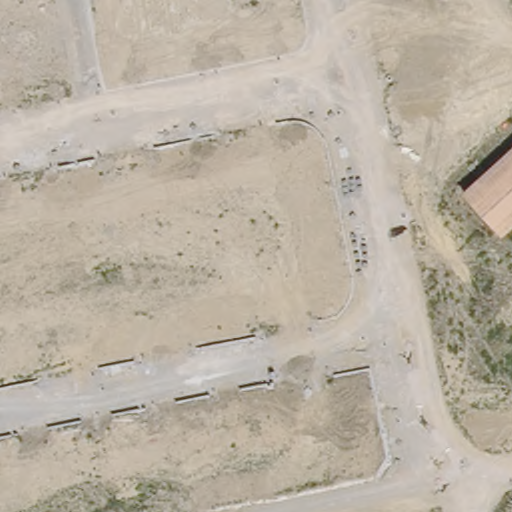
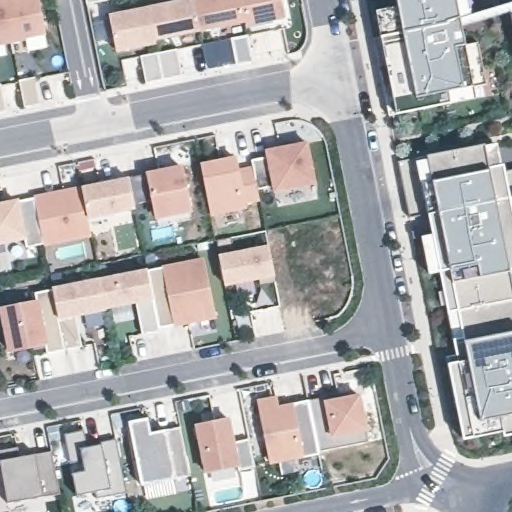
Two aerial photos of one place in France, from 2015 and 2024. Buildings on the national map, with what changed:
unchanged [(39,0),(46,32),(12,40),(4,1),(6,0),(39,0)]
unchanged [(195,0),(201,30),(155,39),(149,8),(189,0),(195,0)]
unchanged [(201,30),(195,0),(241,0),(246,21),(201,30)]
unchanged [(247,24),(246,21),(241,0),(282,0),(286,17),(247,24)]
new [(471,0),(474,14),(512,2),(512,12),(512,10),(465,24),(465,27),(468,43),(481,41),(491,97),(390,117),(379,66),(380,66),(374,39),(381,37),(376,11),(388,9),(399,7),(397,0),(471,0)]
unchanged [(4,1),(12,40),(0,42),(0,1),(4,1)]
unchanged [(149,8),(155,39),(156,42),(117,50),(110,16),(149,8)]
new [(178,49),(183,75),(163,80),(146,83),(141,56),(158,52),(178,49)]
unchanged [(268,157),(267,151),(307,143),(315,183),(275,191),(274,186),(258,190),(254,168),(252,160),(268,157)]
new [(458,355),(442,272),(429,274),(421,237),(435,235),(431,214),(411,216),(400,162),(428,157),(485,146),(498,144),(502,166),(505,165),(506,171),(512,170),(512,197),(512,200),(512,270),(510,271),(512,282),(512,436),(505,437),(504,432),(465,438),(450,366),(447,357),(458,355)]
demolished [(461,191),(512,144),(512,224),(501,235),(461,191)]
new [(258,190),(260,199),(245,202),(245,207),(211,214),(201,165),(236,158),(238,171),(254,168),(258,190)]
new [(182,167),(191,211),(157,217),(148,174),(182,167)]
new [(130,179),(136,207),(88,217),(83,188),(130,179)]
new [(75,187),(75,189),(83,188),(88,217),(92,234),(44,243),(34,195),(75,187)]
new [(18,201),(25,237),(0,242),(0,205),(18,201)]
new [(275,275),(225,285),(220,257),(269,247),(275,275)]
new [(144,334),(136,302),(153,298),(106,307),(101,280),(148,270),(204,259),(215,317),(159,327),(160,331),(144,334)]
new [(263,284),(261,277),(275,275),(276,282),(263,284)]
new [(101,280),(106,307),(106,308),(76,315),(82,346),(65,350),(53,289),(101,280)]
new [(37,301),(36,292),(53,289),(65,350),(47,353),(45,343),(10,350),(2,308),(37,301)]
new [(341,394),(342,399),(360,395),(369,442),(319,451),(309,401),(341,394)]
new [(276,398),(278,408),(292,405),(292,403),(309,401),(319,451),(319,455),(302,458),(302,457),(272,462),(259,401),(276,398)]
new [(148,418),(151,432),(181,427),(191,476),(142,486),(133,440),(129,422),(148,418)]
new [(230,418),(234,442),(250,439),(255,467),(240,470),(239,466),(208,472),(198,425),(230,418)]
new [(71,463),(65,434),(85,430),(88,447),(102,444),(101,442),(117,438),(127,492),(98,498),(96,492),(78,496),(73,473),(85,471),(83,461),(71,463)]
new [(20,458),(36,455),(53,452),(56,465),(61,494),(9,505),(0,460),(0,452),(18,448),(20,458)]

